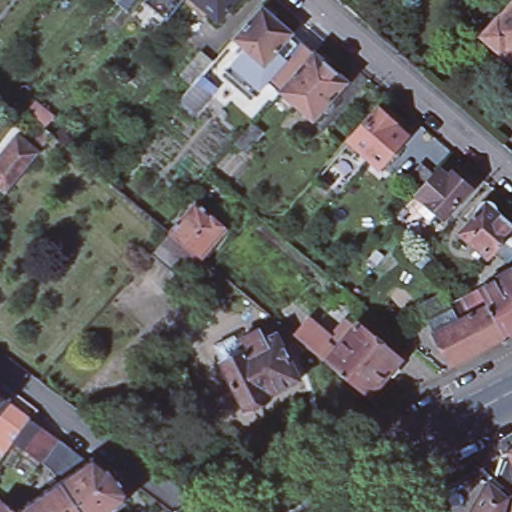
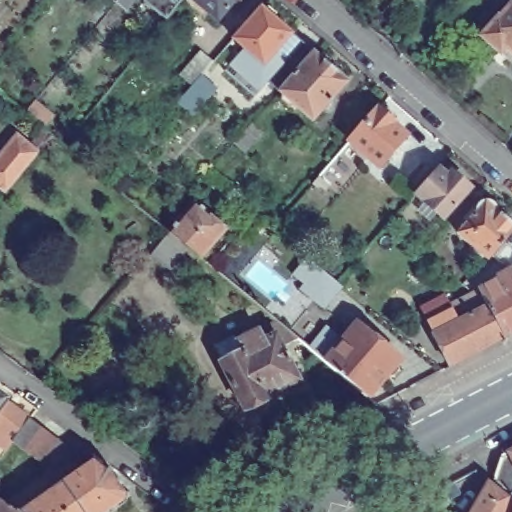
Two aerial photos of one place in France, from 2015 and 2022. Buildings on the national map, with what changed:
unchanged [(122,0),(116,6),(109,0),(122,0)]
unchanged [(145,5),(148,0),(188,0),(184,5),(167,24),(145,5)]
unchanged [(208,17),(205,22),(184,5),(188,0),(238,0),(218,25),(208,17)]
unchanged [(267,10),(269,12),(274,10),(281,17),(281,22),(297,37),(268,68),(238,42),(267,10)]
unchanged [(502,47),(497,52),(483,40),(512,10),(512,56),(502,47)]
unchanged [(185,78),(206,55),(218,65),(225,57),(240,70),(196,120),(181,106),(197,90),(185,78)]
unchanged [(316,59),(321,57),(330,65),(328,70),(347,87),(312,125),(278,95),(313,56),(316,59)]
unchanged [(25,116),(34,105),(53,121),(43,132),(25,116)]
unchanged [(378,111),(380,113),(381,111),(385,111),(393,119),(393,125),(395,127),(395,129),(406,139),(380,170),(349,144),(378,111)]
unchanged [(261,136),(245,155),(234,146),(251,127),(261,136)]
unchanged [(0,159),(15,140),(37,156),(5,195),(0,191),(0,159)]
unchanged [(332,163),(343,172),(323,195),(313,185),(332,163)]
unchanged [(456,181),(461,176),(478,192),(453,220),(426,195),(414,185),(432,165),(444,176),(447,172),(456,181)]
unchanged [(502,259),(490,247),(481,256),(452,231),(481,199),(510,225),(512,227),(512,249),(502,259)]
unchanged [(202,255),(174,231),(200,202),(228,227),(203,256),(202,255)]
unchanged [(183,277),(155,253),(174,231),(202,255),(183,277)]
unchanged [(505,281),(504,281),(504,278),(512,274),(512,296),(505,281)]
unchanged [(490,310),(492,308),(483,291),(504,281),(505,281),(512,296),(512,340),(509,341),(490,310)]
unchanged [(443,317),(455,311),(453,307),(477,295),(485,311),(490,310),(509,341),(453,370),(436,336),(430,324),(443,317)]
unchanged [(273,402),(270,403),(270,406),(268,410),(260,415),(255,414),(253,412),(250,414),(226,367),(217,350),(247,335),(250,342),(263,335),(281,325),(282,326),(296,310),(311,322),(334,340),(345,328),(355,337),(362,328),(404,363),(401,366),(404,373),(398,380),(392,378),(373,402),(330,366),(303,343),(286,351),(304,384),(272,400),(273,402)]
unchanged [(10,404),(0,417),(0,394),(11,402),(10,404)]
unchanged [(10,453),(0,445),(0,417),(10,404),(33,421),(16,445),(10,453)]
unchanged [(110,471),(117,481),(120,481),(126,495),(127,500),(125,507),(121,512),(25,512),(65,485),(57,472),(47,465),(16,445),(33,421),(63,443),(76,452),(93,465),(98,462),(110,471)]
unchanged [(496,482),(503,457),(509,455),(512,453),(512,496),(496,482)]
unchanged [(491,485),(510,500),(507,512),(475,512),(491,485)]
unchanged [(426,498),(441,512),(401,512),(405,510),(426,498)]
unchanged [(0,510),(0,509),(0,499),(5,503),(18,512),(0,512),(0,510)]
unchanged [(512,506),(512,512),(510,512),(512,506)]

